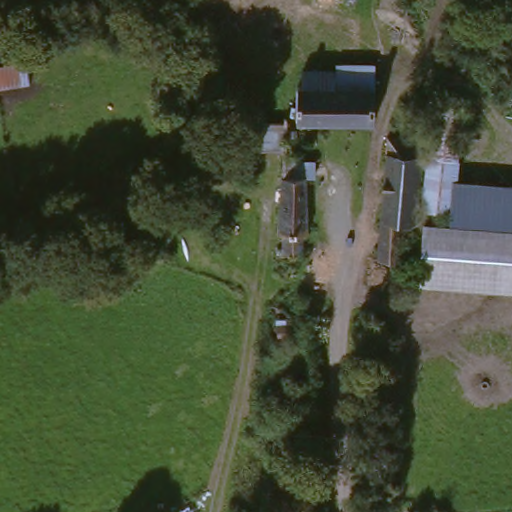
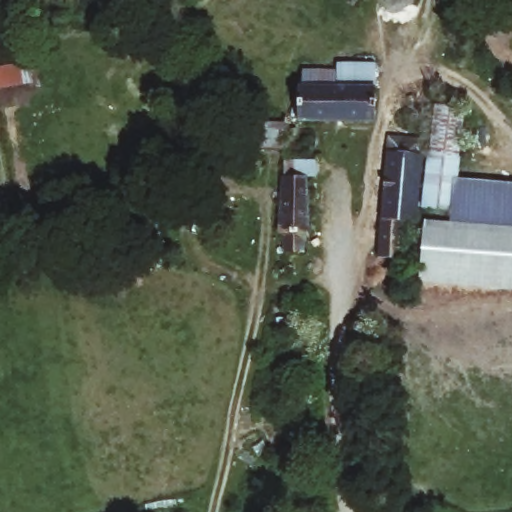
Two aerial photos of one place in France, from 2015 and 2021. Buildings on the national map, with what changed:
unchanged [(27,60),(28,84),(0,86),(0,62),(27,60)]
unchanged [(294,118),(294,84),(303,84),(303,69),(335,69),(376,70),(375,84),(374,120),(294,118)]
unchanged [(417,198),(435,98),(464,104),(451,179),(447,203),(417,198)]
unchanged [(404,218),(399,254),(372,251),(383,144),(384,129),(408,132),(418,133),(416,147),(409,217),(404,218)]
unchanged [(298,251),(298,268),(288,268),(279,268),(282,250),(278,250),(278,189),(281,189),(281,175),(308,175),(307,190),(302,189),(301,249),(298,251)]
unchanged [(448,209),(447,203),(451,179),(512,184),(512,227),(448,221),(448,209)]
unchanged [(512,227),(512,286),(410,276),(418,219),(448,221),(512,227)]

